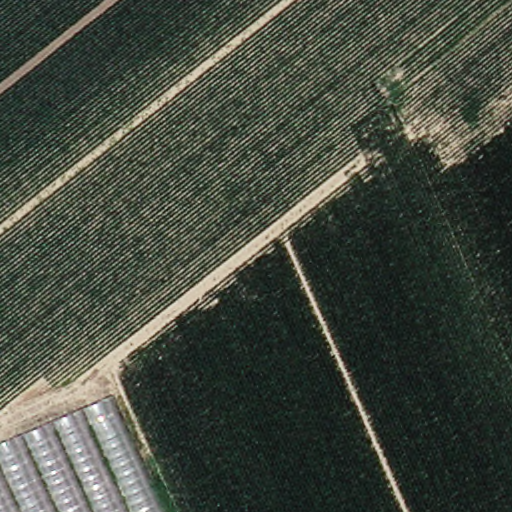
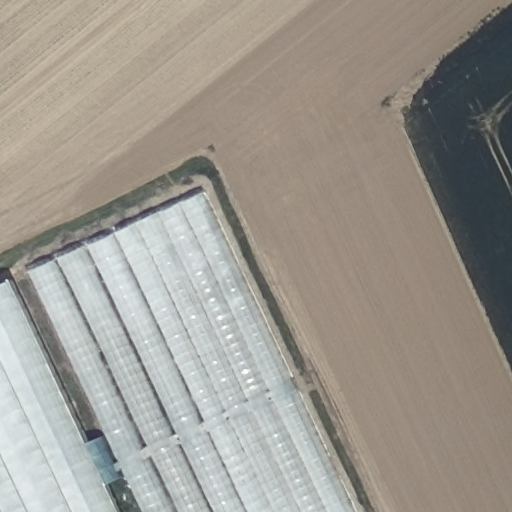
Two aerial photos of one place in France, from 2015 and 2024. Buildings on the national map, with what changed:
new [(144,512),(27,270),(205,193),(361,512),(144,512)]
new [(92,452),(100,448),(115,480),(107,484),(120,512),(0,512),(0,281),(10,277),(92,452)]

